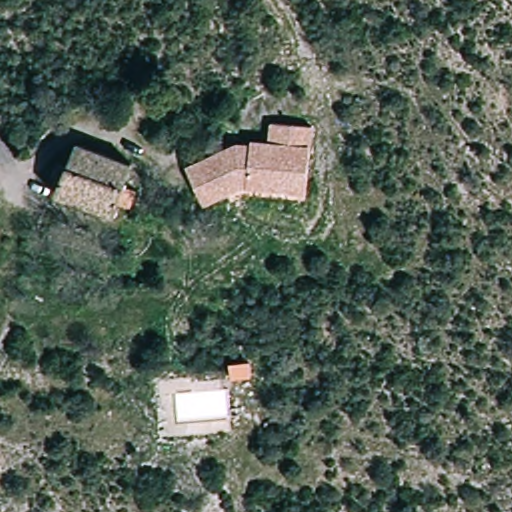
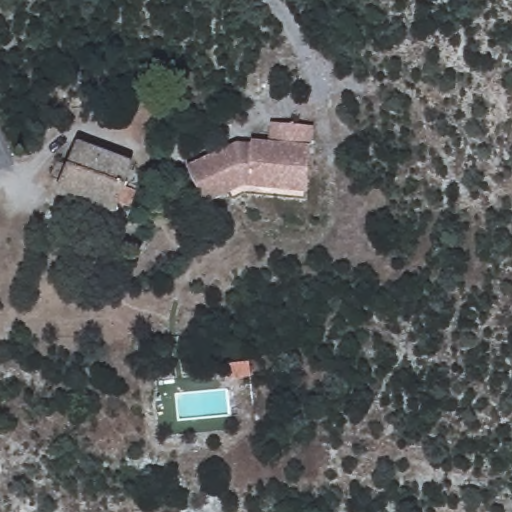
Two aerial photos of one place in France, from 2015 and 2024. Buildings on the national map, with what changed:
unchanged [(309,148),(305,194),(244,189),(201,209),(184,165),(236,142),(252,140),(267,143),(268,124),(310,128),(309,148)]
unchanged [(68,166),(78,144),(130,166),(121,190),(132,195),(125,213),(114,209),(109,219),(55,201),(60,184),(48,179),(55,161),(68,166)]

